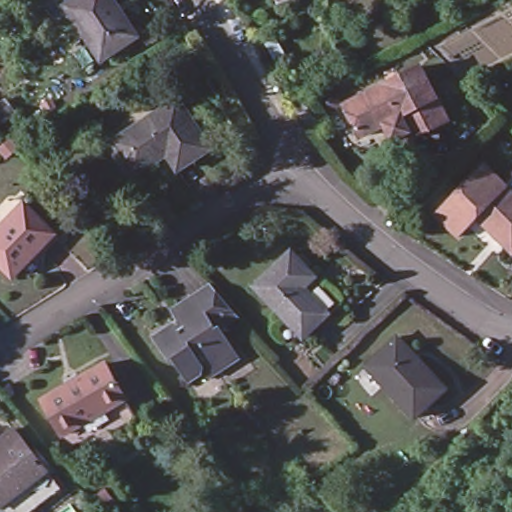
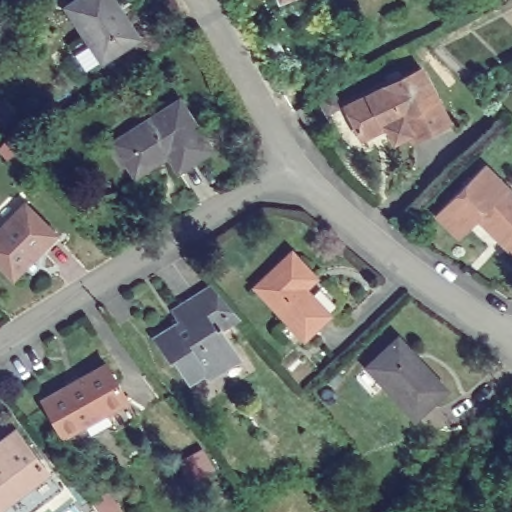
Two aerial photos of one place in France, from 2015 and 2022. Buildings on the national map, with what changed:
unchanged [(101,61),(65,6),(75,0),(113,0),(137,37),(101,61)]
unchanged [(420,67),(448,121),(412,139),(409,132),(393,141),(385,125),(360,137),(345,106),(420,67)]
unchanged [(302,94),(306,102),(296,107),(292,100),(302,94)]
unchanged [(178,171),(167,154),(151,165),(152,165),(135,176),(124,160),(113,144),(130,133),(130,132),(146,122),(147,122),(162,112),(162,111),(178,100),(189,117),(190,117),(200,132),(200,133),(211,150),(195,160),(178,171)]
unchanged [(306,106),(317,119),(307,126),(297,112),(306,106)]
unchanged [(477,219),(459,237),(435,214),(483,165),(512,193),(512,252),(477,219)]
unchanged [(12,277),(0,265),(0,229),(24,204),(55,234),(12,277)]
unchanged [(334,314),(309,338),(260,286),(296,252),(320,277),(310,287),(334,314)]
unchanged [(215,285),(244,317),(225,329),(245,358),(224,372),(214,358),(206,363),(209,367),(207,375),(195,382),(179,358),(177,361),(159,338),(179,325),(188,340),(199,334),(192,325),(188,327),(177,310),(215,285)]
unchanged [(446,388),(415,418),(366,367),(397,337),(446,388)]
unchanged [(110,363),(131,399),(69,436),(48,400),(110,363)]
unchanged [(0,439),(13,428),(37,458),(40,455),(53,471),(49,474),(60,487),(28,512),(0,512),(0,439)]
unchanged [(120,508),(114,512),(97,512),(87,499),(88,498),(105,488),(120,508)]

